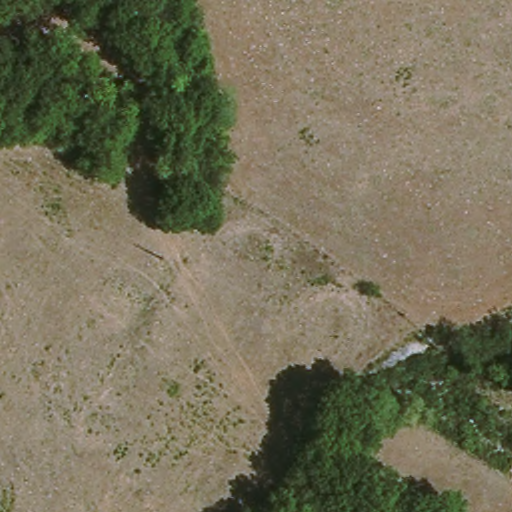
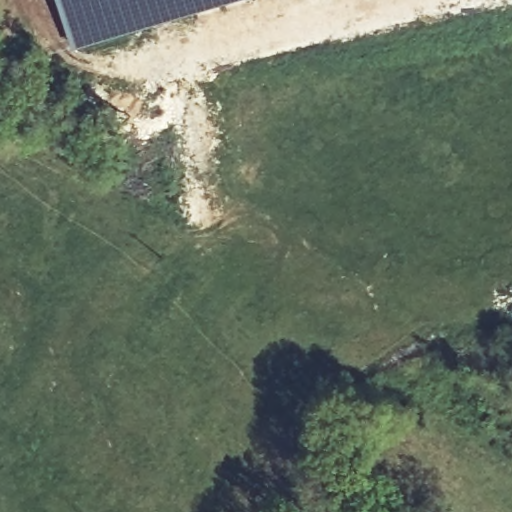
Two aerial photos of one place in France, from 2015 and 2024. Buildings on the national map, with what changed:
new [(61,0),(237,0),(76,47),(61,0)]

